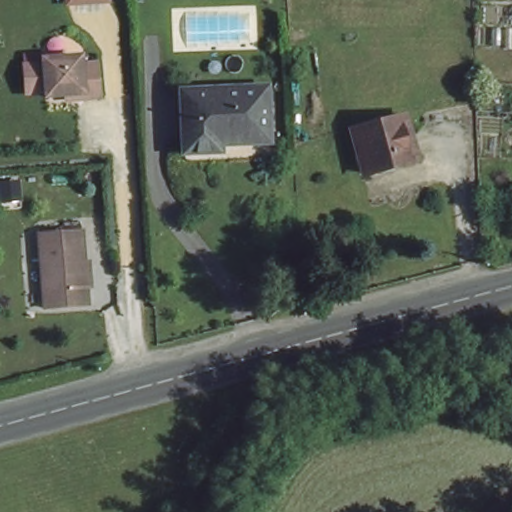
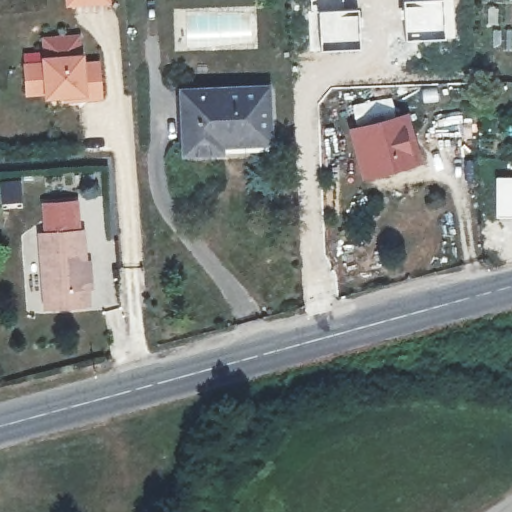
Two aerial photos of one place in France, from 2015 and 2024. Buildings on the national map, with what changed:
unchanged [(65,2),(65,0),(108,0),(65,2)]
new [(344,7),(310,9),(310,0),(343,0),(344,7)]
new [(448,37),(404,39),(402,0),(447,0),(448,37)]
new [(310,9),(344,7),(360,6),(361,48),(310,51),(310,9)]
unchanged [(65,88),(45,88),(45,84),(25,84),(24,56),(43,55),(43,50),(81,48),(81,55),(98,54),(100,89),(83,90),(65,91),(65,88)]
unchanged [(220,144),(219,154),(186,155),(183,92),(266,90),(266,132),(266,142),(220,144)]
unchanged [(416,159),(369,173),(356,130),(404,118),(416,159)]
new [(512,176),(512,217),(495,217),(495,176),(512,176)]
new [(23,203),(0,205),(0,200),(0,180),(21,178),(23,203)]
unchanged [(90,310),(48,311),(43,237),(85,234),(90,310)]

